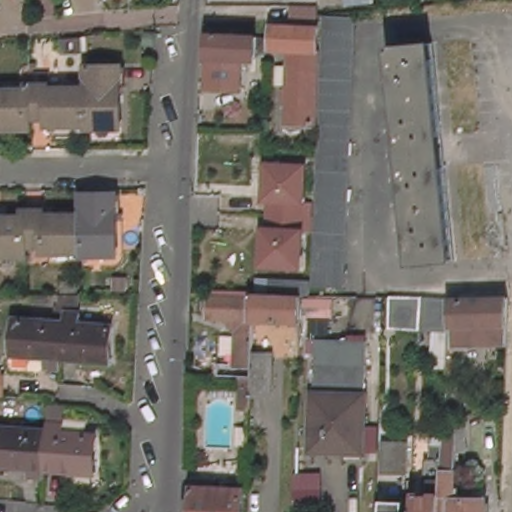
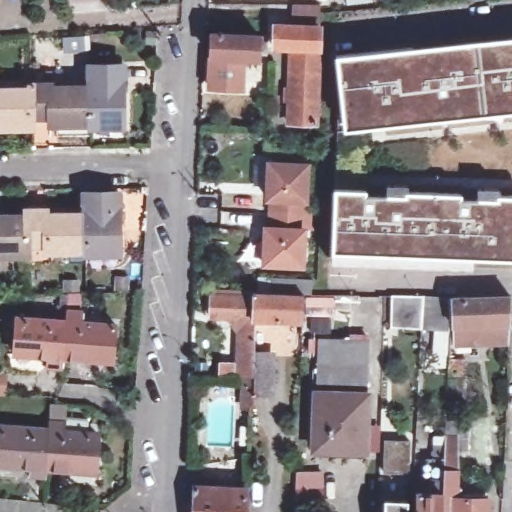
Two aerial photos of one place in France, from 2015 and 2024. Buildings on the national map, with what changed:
new [(379,1),(346,6),(345,0),(379,0),(379,1)]
demolished [(359,24),(348,291),(315,289),(326,22),(359,24)]
unchanged [(319,32),(314,127),(296,126),(300,53),(274,52),(275,30),(319,32)]
new [(512,34),(512,111),(506,112),(421,123),(342,130),(334,53),(512,34)]
unchanged [(85,49),(65,51),(64,37),(84,35),(85,49)]
unchanged [(206,89),(211,60),(212,38),(268,41),(267,56),(259,56),(258,63),(243,62),(243,70),(243,90),(206,89)]
demolished [(394,46),(436,42),(458,260),(417,264),(394,46)]
unchanged [(44,92),(43,77),(63,77),(63,92),(64,97),(103,96),(103,90),(94,90),(93,77),(101,76),(133,76),(133,134),(103,135),(103,131),(63,132),(63,125),(43,126),(43,135),(4,136),(3,129),(0,129),(0,79),(12,79),(13,98),(44,98),(44,92)]
unchanged [(312,165),(306,267),(261,266),(269,162),(312,165)]
new [(332,186),(367,187),(367,190),(385,191),(386,182),(401,183),(401,188),(461,191),(461,194),(474,195),(475,184),(499,186),(499,192),(512,192),(512,258),(432,255),(366,255),(366,257),(364,257),(364,262),(329,261),(332,186)]
unchanged [(35,214),(35,208),(54,207),(54,214),(54,215),(93,216),(93,194),(126,192),(128,252),(93,252),(93,249),(53,249),(53,244),(36,244),(37,254),(0,254),(0,217),(35,218),(35,214)]
unchanged [(111,278),(126,278),(127,288),(112,288),(111,278)]
unchanged [(244,412),(245,387),(255,387),(255,384),(255,380),(250,380),(232,378),(231,373),(235,373),(237,338),(226,331),(226,322),(211,322),(211,293),(251,295),(254,296),(258,296),(259,282),(313,282),(313,298),(305,298),(304,323),(304,324),(258,322),(257,336),(256,358),(275,360),(274,398),(254,398),(254,413),(244,412)]
unchanged [(123,327),(121,365),(74,362),(73,374),(68,373),(59,373),(60,362),(26,360),(29,321),(69,323),(73,323),(76,296),(80,296),(90,296),(90,315),(93,315),(93,326),(123,327)]
unchanged [(434,302),(462,304),(460,330),(433,328),(401,325),(403,300),(434,302)]
unchanged [(512,302),(512,344),(463,344),(464,303),(512,302)]
unchanged [(324,448),(329,337),(381,339),(376,451),(324,448)]
unchanged [(449,357),(463,357),(462,369),(456,368),(455,375),(448,375),(449,357)]
unchanged [(3,371),(5,371),(5,391),(0,391),(0,366),(3,367),(3,371)]
unchanged [(471,496),(499,497),(498,512),(394,512),(394,496),(416,497),(416,510),(422,511),(428,512),(429,492),(444,492),(444,482),(436,481),(436,456),(442,457),(442,449),(437,448),(437,441),(454,442),(454,424),(455,417),(477,419),(477,425),(475,446),(470,446),(468,485),(471,485),(471,496)]
unchanged [(103,476),(60,473),(54,472),(53,483),(35,482),(35,472),(3,469),(4,432),(56,435),(56,424),(61,425),(76,425),(95,426),(95,437),(106,437),(103,476)]
unchanged [(386,468),(387,440),(411,441),(409,470),(386,468)]
new [(294,471),(323,470),(323,506),(295,507),(294,471)]
unchanged [(204,482),(222,482),(221,487),(251,490),(250,512),(197,512),(198,486),(203,486),(204,482)]

